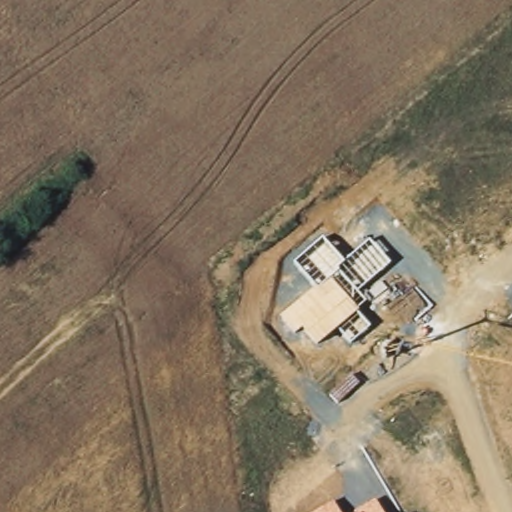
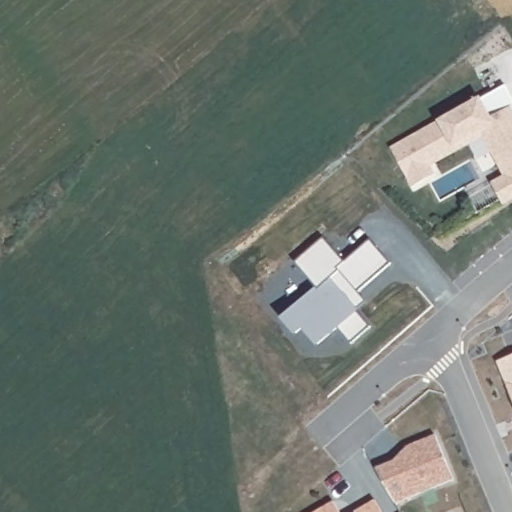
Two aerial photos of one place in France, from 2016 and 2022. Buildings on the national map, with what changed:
new [(492,183),(505,177),(484,137),(431,165),(436,175),(413,187),(391,148),(482,98),(506,85),(512,96),(512,201),(504,205),(501,200),(478,214),(469,198),(493,185),(492,183)]
unchanged [(316,288),(293,264),(322,239),(344,260),(368,239),(389,264),(357,292),(365,300),(355,310),(370,326),(350,343),(337,329),(316,346),(301,329),(295,334),(280,318),(316,288)]
new [(512,357),(512,398),(497,363),(512,357)]
new [(410,454),(407,447),(435,435),(454,479),(395,503),(375,469),(410,454)]
unchanged [(380,512),(351,512),(373,500),(380,512)]
unchanged [(339,512),(315,512),(332,502),(339,512)]

